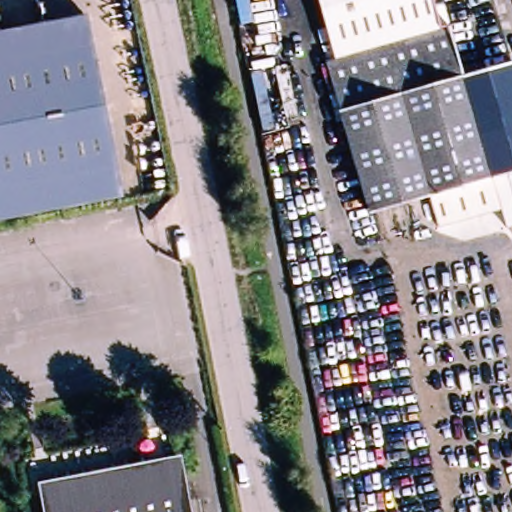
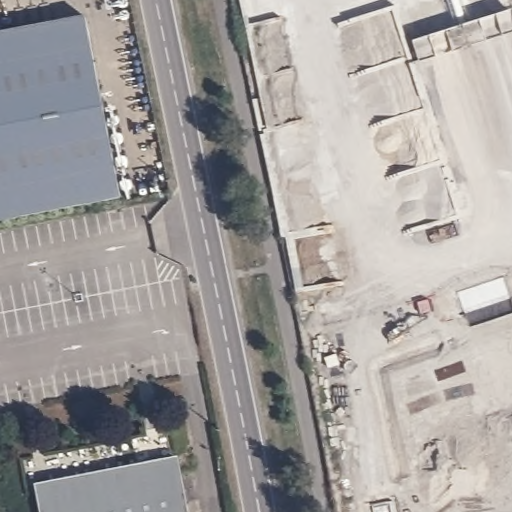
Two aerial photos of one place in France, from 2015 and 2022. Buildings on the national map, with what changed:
demolished [(504,232),(499,213),(434,230),(427,200),(365,218),(324,65),(332,64),(315,0),(427,0),(435,29),(446,26),(449,29),(474,21),(512,176),(512,230),(504,232)]
demolished [(474,21),(494,14),(497,28),(504,51),(512,79),(512,176),(474,21)]
unchanged [(0,223),(0,36),(65,24),(97,204),(0,223)]
unchanged [(185,512),(41,512),(37,487),(175,460),(185,512)]

